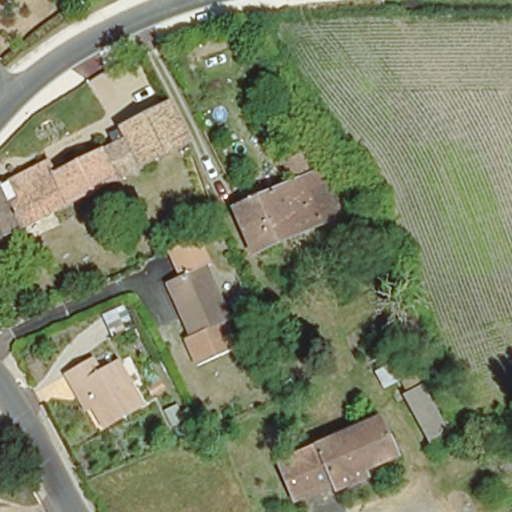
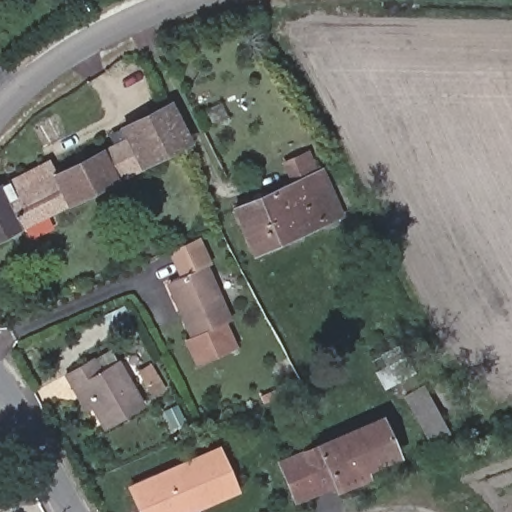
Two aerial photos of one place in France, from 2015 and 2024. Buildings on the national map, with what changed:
unchanged [(48,157),(54,169),(128,132),(123,121),(170,98),(182,123),(189,137),(0,232),(0,182),(48,157)]
unchanged [(309,152),(316,169),(288,180),(282,164),(309,152)]
unchanged [(342,214),(253,251),(235,207),(324,170),(342,214)]
unchanged [(231,317),(222,321),(233,344),(197,361),(184,335),(190,332),(178,308),(166,283),(176,278),(208,264),(231,317)]
unchanged [(401,375),(396,367),(382,375),(374,361),(400,348),(412,369),(401,375)]
unchanged [(66,370),(94,354),(101,367),(120,357),(144,398),(107,419),(95,399),(86,404),(73,382),(66,370)]
unchanged [(164,383),(153,390),(140,369),(151,362),(164,383)]
unchanged [(418,374),(444,421),(427,431),(402,383),(418,374)]
unchanged [(335,476),(295,493),(279,456),(382,412),(398,450),(364,464),(367,470),(338,483),(335,476)]
new [(137,512),(126,486),(219,446),(239,492),(192,512),(137,512)]

